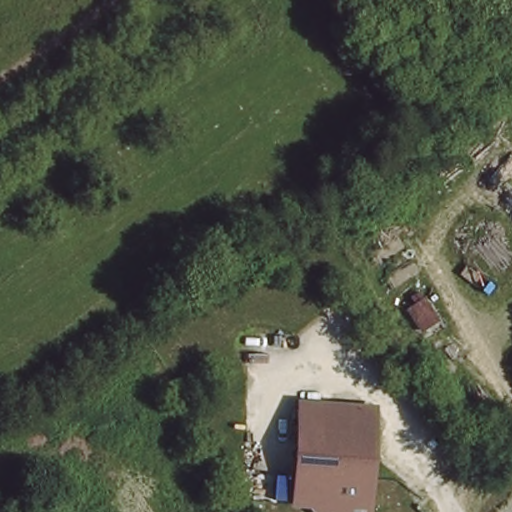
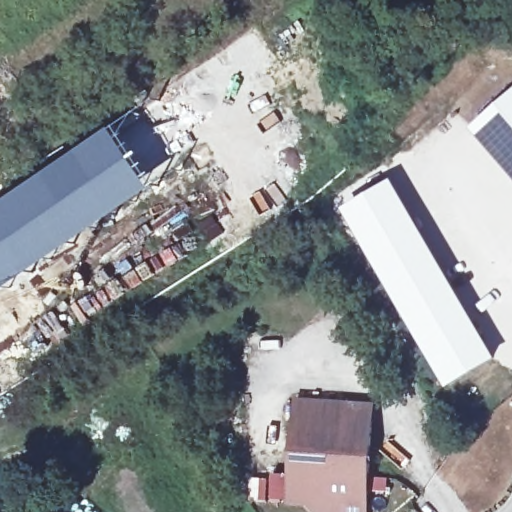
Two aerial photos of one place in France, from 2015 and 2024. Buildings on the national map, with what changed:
new [(512,176),(469,127),(512,89),(512,176)]
new [(115,126),(154,185),(96,227),(74,242),(0,294),(0,204),(115,126)]
new [(390,177),(497,357),(447,388),(339,209),(390,177)]
unchanged [(311,512),(303,500),(286,500),(292,396),(370,400),(366,512),(311,512)]

